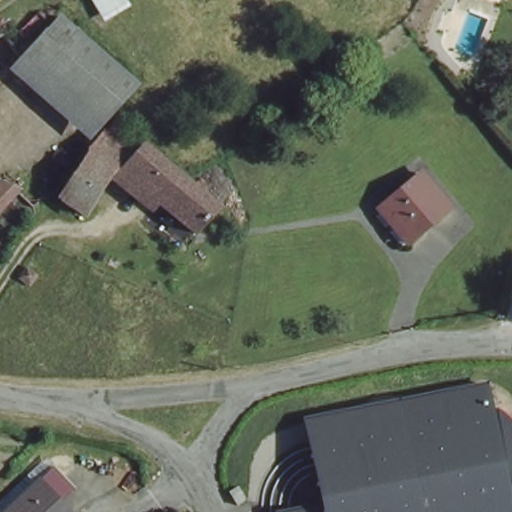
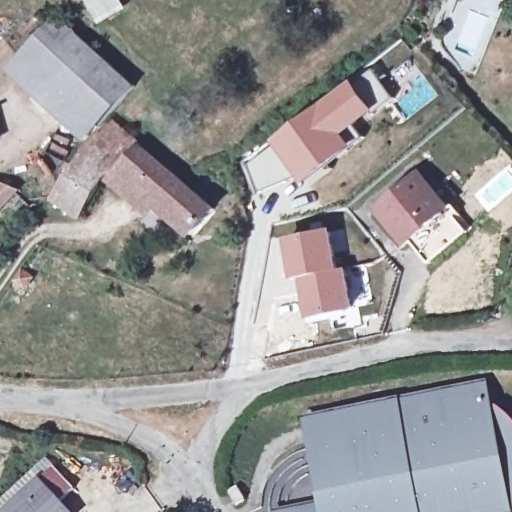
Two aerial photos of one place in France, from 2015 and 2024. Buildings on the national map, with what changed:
unchanged [(88,0),(129,0),(132,4),(100,23),(88,0)]
unchanged [(138,78),(113,112),(104,124),(67,93),(32,64),(63,22),(138,78)]
new [(365,136),(303,183),(298,176),(271,140),(352,78),(373,64),(395,96),(376,110),(357,126),(365,136)]
unchanged [(104,137),(108,130),(139,156),(150,145),(225,206),(200,238),(120,174),(89,218),(63,199),(104,137)]
new [(271,140),(298,176),(254,194),(239,160),(271,140)]
unchanged [(422,172),(451,208),(408,244),(379,207),(422,172)]
unchanged [(12,193),(0,207),(0,187),(12,193)]
new [(310,231),(308,221),(322,218),(324,228),(333,227),(342,268),(298,279),(293,280),(283,237),(310,231)]
new [(342,268),(349,266),(358,309),(307,320),(298,279),(342,268)]
unchanged [(323,499),(308,419),(484,385),(507,506),(508,512),(274,512),(273,508),(323,499)]
unchanged [(40,479),(72,512),(5,512),(40,479)]

